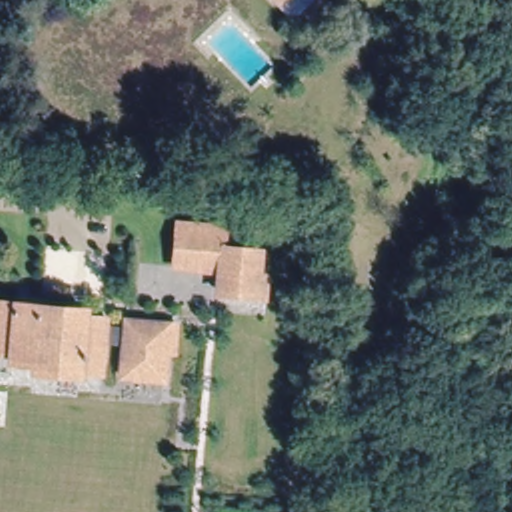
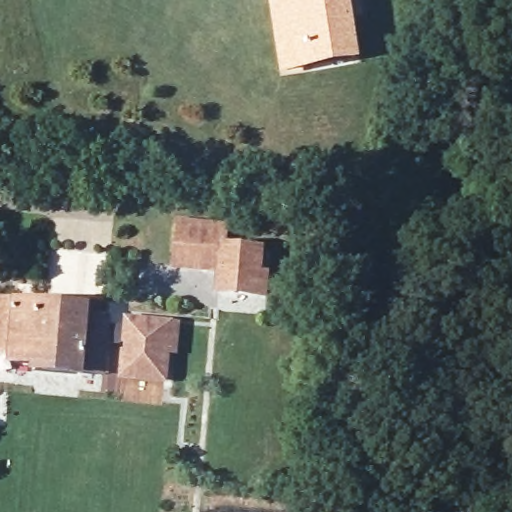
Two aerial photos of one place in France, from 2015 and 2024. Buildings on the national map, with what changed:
new [(314,65),(284,70),(274,0),(348,0),(354,48),(356,60),(314,65)]
demolished [(328,6),(312,21),(303,12),(316,0),(322,0),(328,6)]
unchanged [(264,295),(255,294),(219,291),(172,286),(175,265),(179,224),(225,229),(223,247),(259,251),(257,276),(265,277),(264,295)]
unchanged [(0,368),(0,297),(45,301),(45,307),(111,313),(106,364),(85,362),(84,369),(38,364),(38,356),(17,354),(14,370),(0,368)]
unchanged [(121,377),(126,320),(169,325),(177,325),(175,352),(166,351),(163,381),(121,377)]
unchanged [(242,512),(202,512),(202,507),(242,512)]

